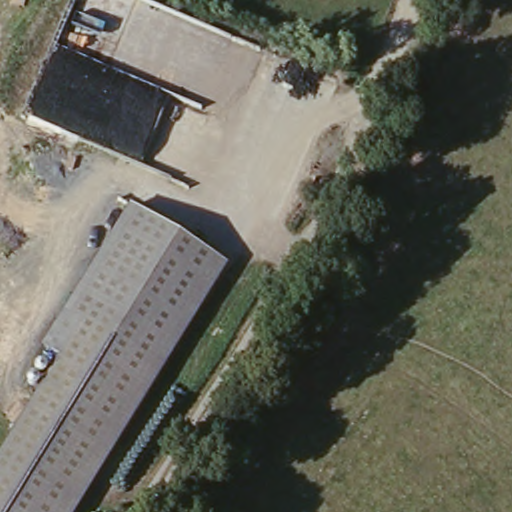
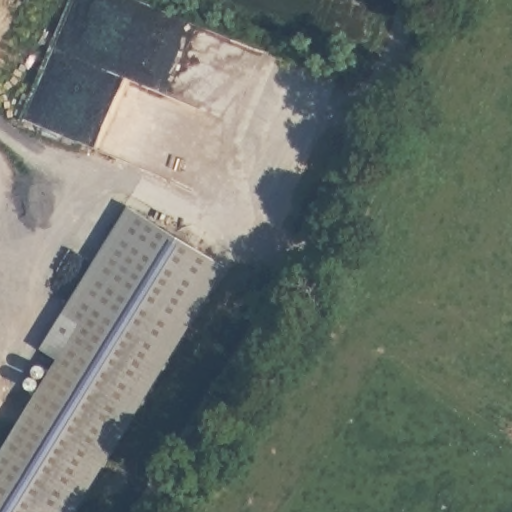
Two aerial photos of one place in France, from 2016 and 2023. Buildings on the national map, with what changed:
unchanged [(60,354),(43,343),(131,202),(230,265),(81,512),(0,512),(0,455),(60,354)]

